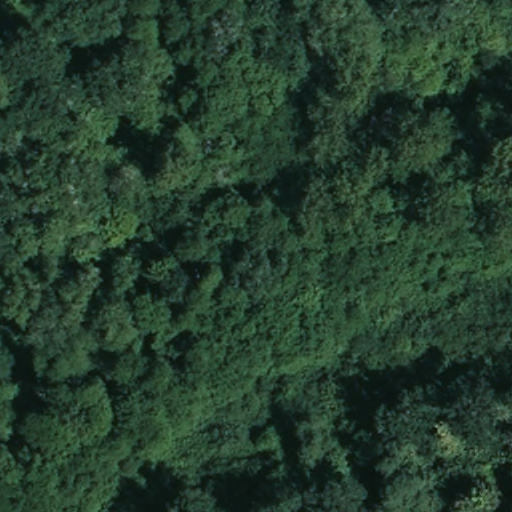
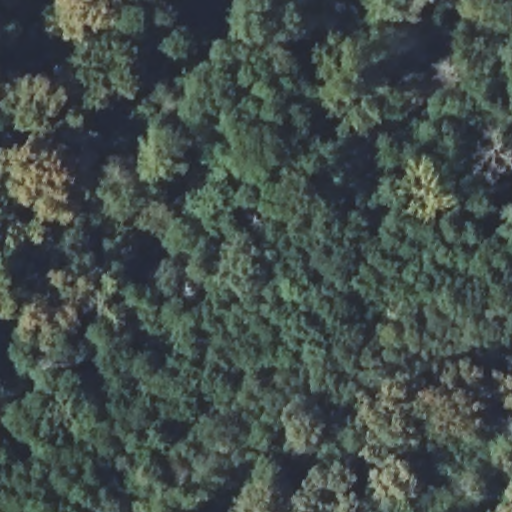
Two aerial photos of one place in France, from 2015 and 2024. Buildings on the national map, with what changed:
[]

